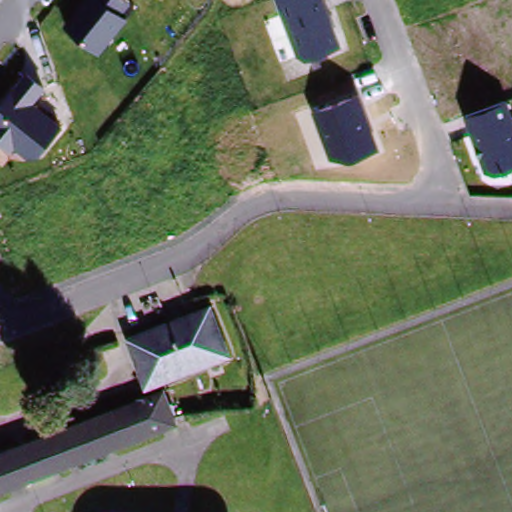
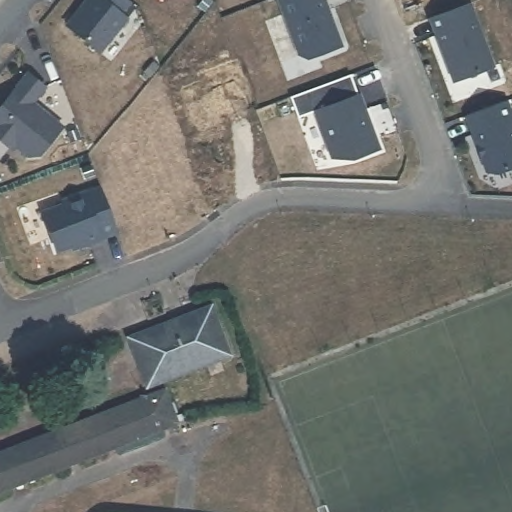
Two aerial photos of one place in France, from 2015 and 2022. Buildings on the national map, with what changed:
unchanged [(126,0),(131,4),(122,15),(127,20),(99,55),(65,27),(87,0),(126,0)]
unchanged [(307,61),(297,57),(278,0),(324,0),(342,47),(307,61)]
new [(470,9),(494,72),(453,88),(429,24),(470,9)]
unchanged [(27,74),(45,88),(33,102),(64,127),(40,157),(27,157),(14,147),(11,152),(0,141),(0,105),(27,74)]
unchanged [(358,97),(380,151),(350,164),(330,160),(312,112),(358,97)]
unchanged [(512,117),(512,170),(495,177),(485,172),(466,119),(507,104),(512,117)]
new [(56,197),(78,189),(94,182),(99,194),(112,231),(67,247),(65,243),(49,249),(35,209),(57,201),(56,197)]
unchanged [(208,305),(226,349),(146,380),(129,336),(208,305)]
unchanged [(0,488),(0,449),(161,390),(174,424),(0,488)]

